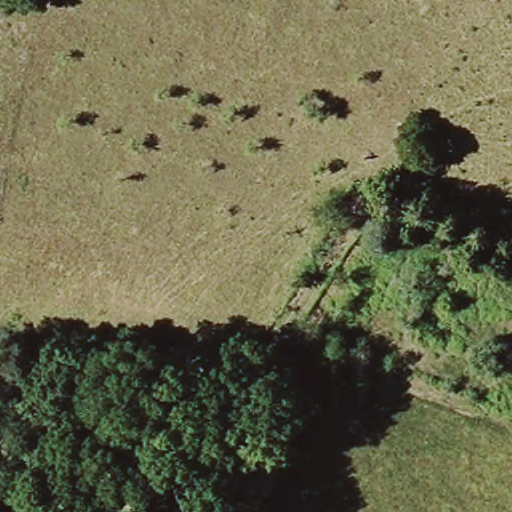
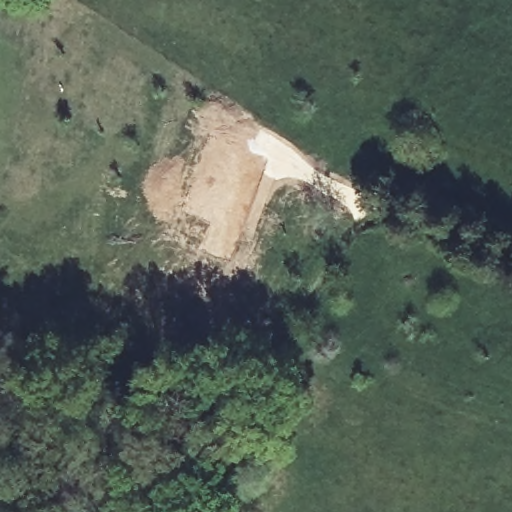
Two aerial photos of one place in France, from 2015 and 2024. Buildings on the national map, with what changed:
[]

